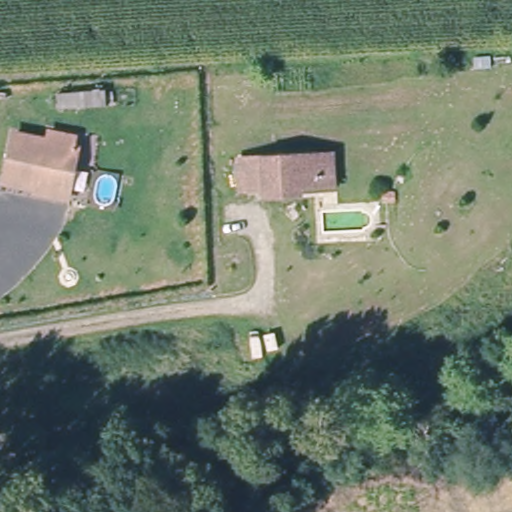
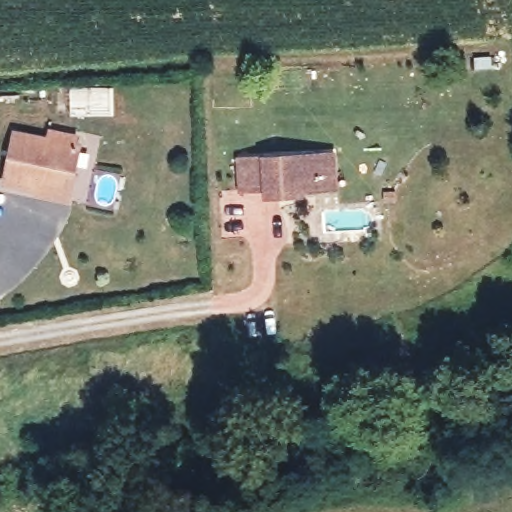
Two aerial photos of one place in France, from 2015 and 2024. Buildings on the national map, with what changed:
unchanged [(34,192),(35,188),(3,184),(10,134),(44,139),(46,127),(79,134),(73,169),(70,198),(34,192)]
unchanged [(280,187),(255,188),(255,155),(333,153),(346,152),(347,185),(333,187),(280,190),(280,187)]
unchanged [(392,200),(382,200),(383,189),(392,190),(392,200)]

